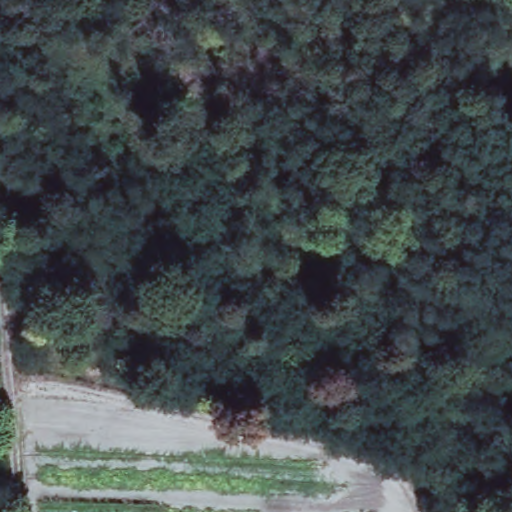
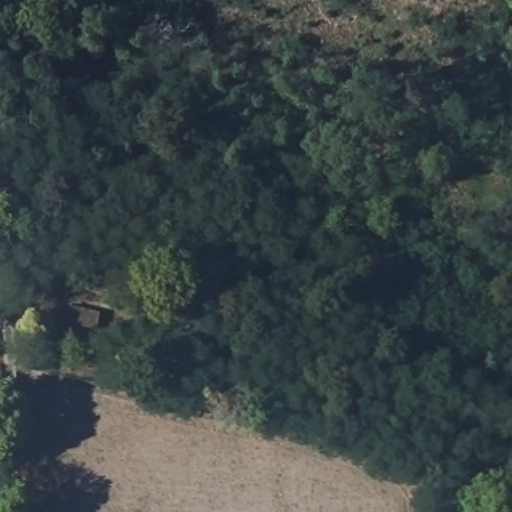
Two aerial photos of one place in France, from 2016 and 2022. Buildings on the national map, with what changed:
unchanged [(69,322),(73,300),(98,304),(95,327),(69,322)]

